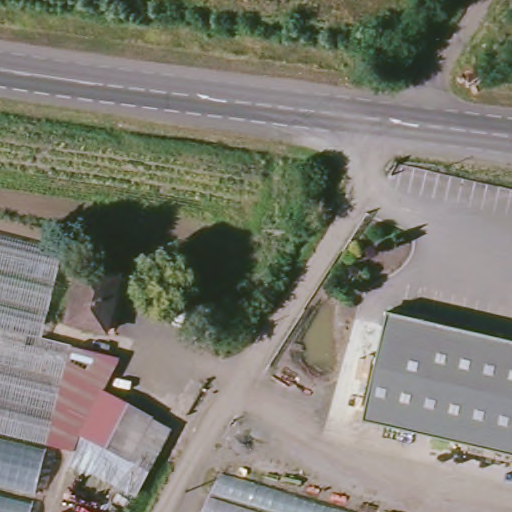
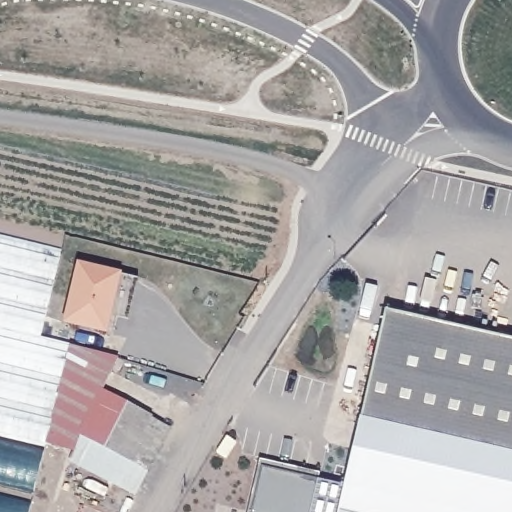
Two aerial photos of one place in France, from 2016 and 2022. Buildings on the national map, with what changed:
unchanged [(0,240),(55,254),(35,340),(64,347),(64,349),(38,448),(0,438),(0,240)]
unchanged [(61,318),(76,260),(117,274),(103,330),(61,318)]
new [(260,459),(320,472),(318,479),(345,486),(385,310),(487,334),(389,314),(367,424),(512,453),(512,512),(248,512),(260,459)]
unchanged [(512,339),(512,453),(367,424),(389,314),(512,339)]
unchanged [(64,349),(112,361),(97,393),(165,425),(142,470),(70,437),(65,455),(38,448),(64,349)]
demolished [(512,505),(512,512),(204,512),(232,448),(242,452),(250,427),(512,505)]
unchanged [(65,455),(70,437),(142,470),(132,497),(61,464),(65,455)]
unchanged [(0,444),(40,453),(26,512),(0,512),(0,444)]

